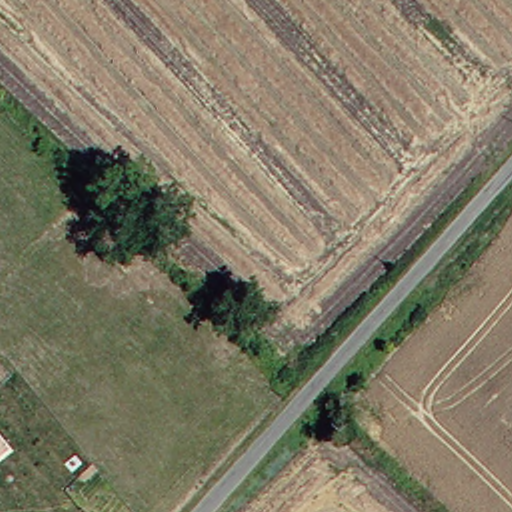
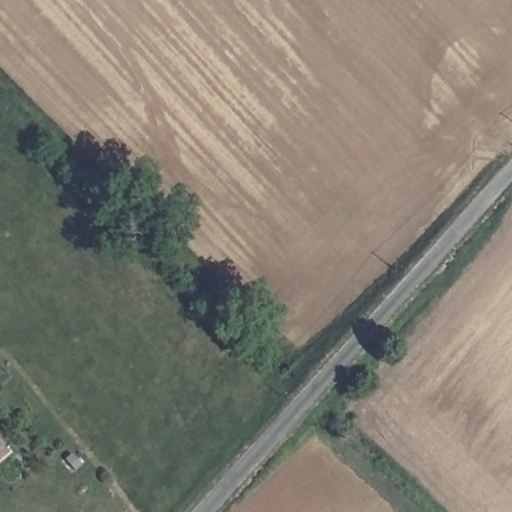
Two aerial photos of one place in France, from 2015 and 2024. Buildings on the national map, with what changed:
unchanged [(4,453),(0,457),(0,447),(4,453)]

